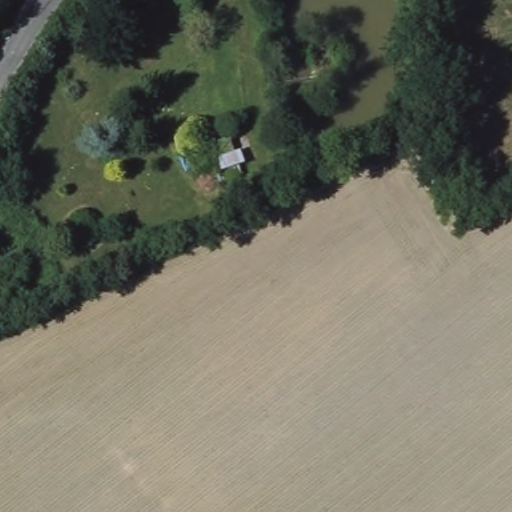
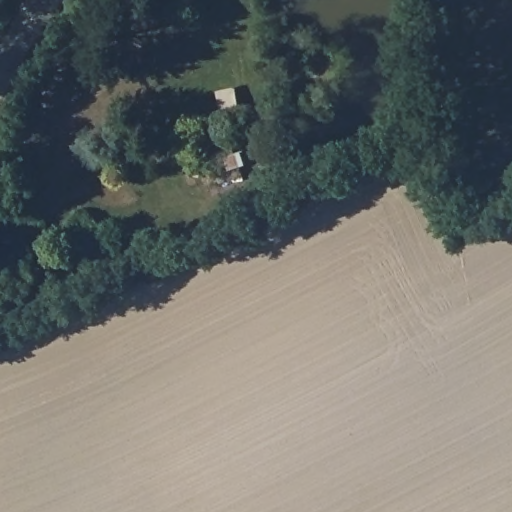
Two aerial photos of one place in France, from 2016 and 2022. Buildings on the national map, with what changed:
unchanged [(240,151),(246,150),(249,175),(224,181),(211,147),(236,137),(240,151)]

